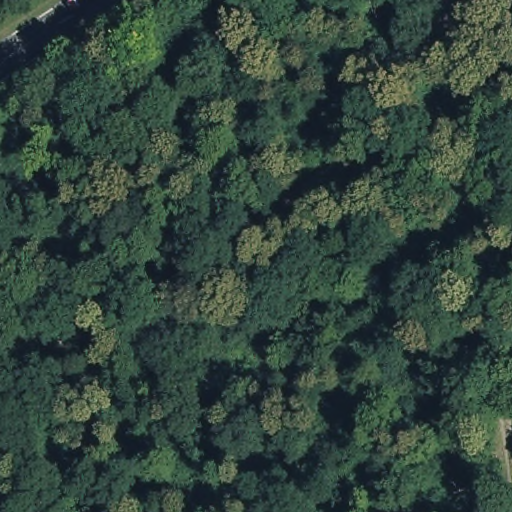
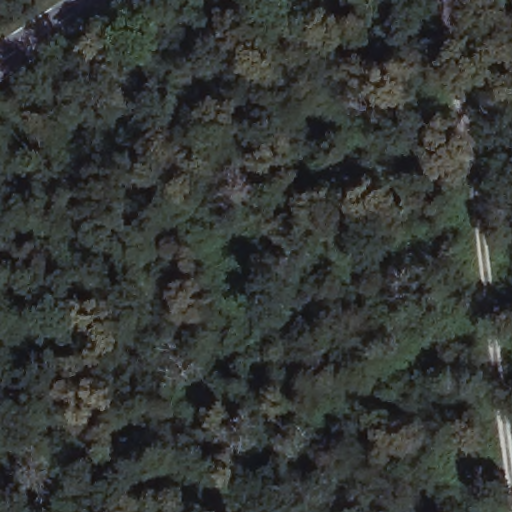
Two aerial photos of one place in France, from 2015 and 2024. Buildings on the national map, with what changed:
[]

